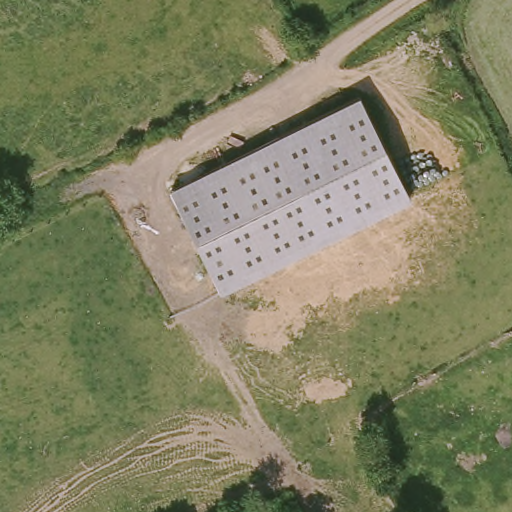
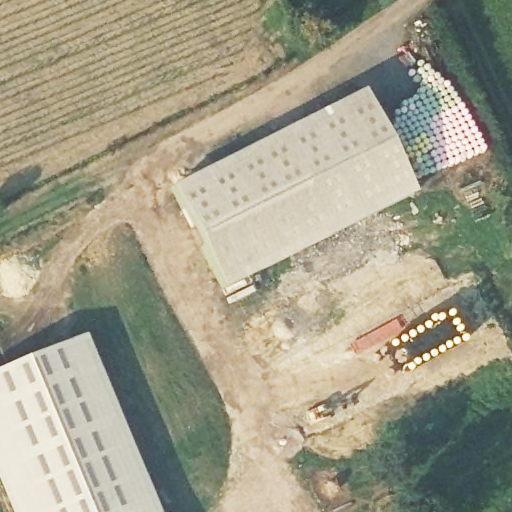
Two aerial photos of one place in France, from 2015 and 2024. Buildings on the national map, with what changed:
unchanged [(360,95),(412,196),(220,292),(171,189),(360,95)]
new [(0,495),(0,372),(83,337),(156,512),(7,512),(0,495)]

